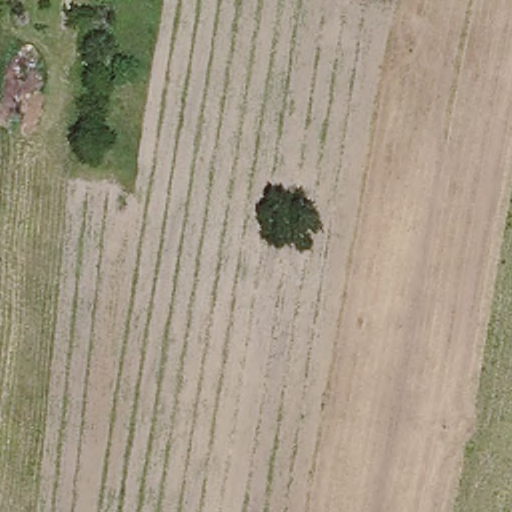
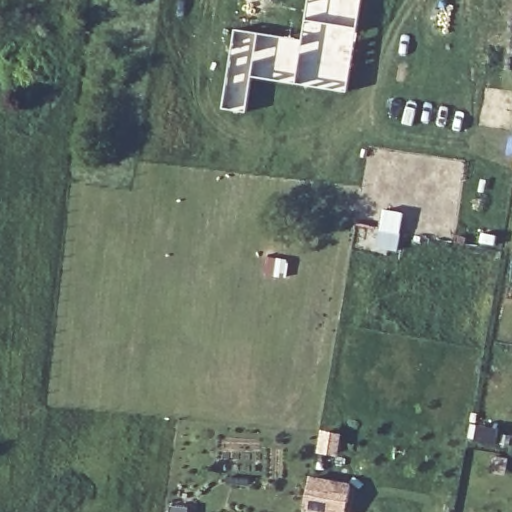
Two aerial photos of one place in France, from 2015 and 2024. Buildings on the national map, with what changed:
new [(301,38),(307,0),(363,0),(348,87),(336,86),(328,87),(252,77),(247,112),(222,109),(234,28),(301,38)]
new [(305,478),(346,486),(341,512),(308,512),(299,511),(305,478)]

